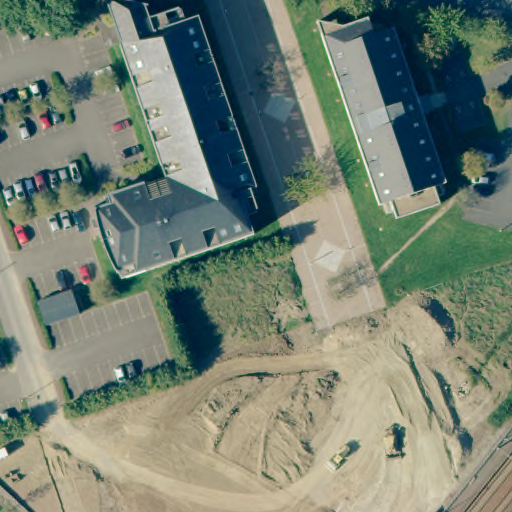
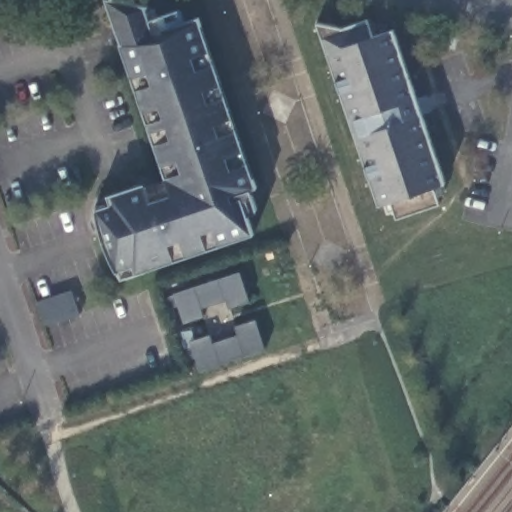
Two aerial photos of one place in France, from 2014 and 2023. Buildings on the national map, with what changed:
unchanged [(106,249),(99,227),(94,203),(100,201),(111,198),(109,192),(135,184),(145,184),(150,199),(170,192),(119,41),(105,0),(117,0),(149,8),(152,16),(175,9),(179,21),(198,14),(256,185),(250,187),(256,207),(255,207),(256,209),(247,213),(252,232),(121,276),(106,249)]
unchanged [(417,100),(421,99),(425,111),(421,113),(444,181),(432,185),(438,202),(395,217),(389,199),(377,204),(320,32),(367,16),(372,34),(392,27),(417,100)]
new [(240,271),(250,300),(230,307),(227,298),(201,307),(204,315),(184,322),(175,293),(240,271)]
unchanged [(71,288),(79,311),(45,323),(37,299),(71,288)]
new [(210,334),(213,343),(239,334),(236,325),(256,319),(266,348),(200,369),(191,340),(210,334)]

